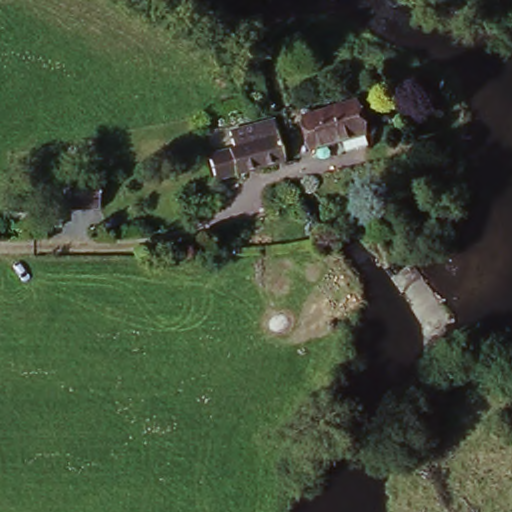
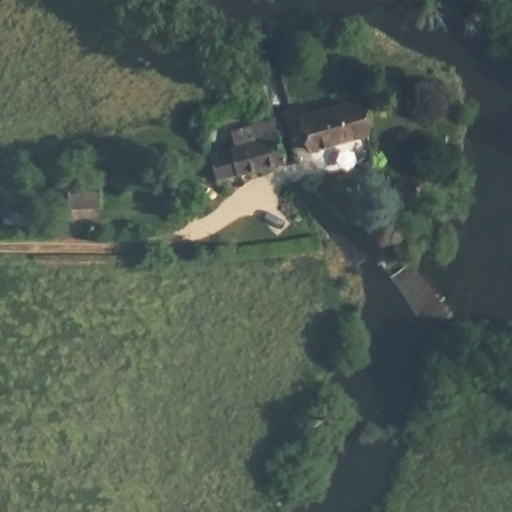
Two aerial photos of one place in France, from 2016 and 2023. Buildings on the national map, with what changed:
unchanged [(353,101),(360,135),(305,149),(297,115),(353,101)]
unchanged [(212,165),(229,159),(236,157),(231,141),(272,130),(284,170),(239,184),(217,190),(212,165)]
unchanged [(63,182),(94,184),(93,216),(62,215),(63,182)]

